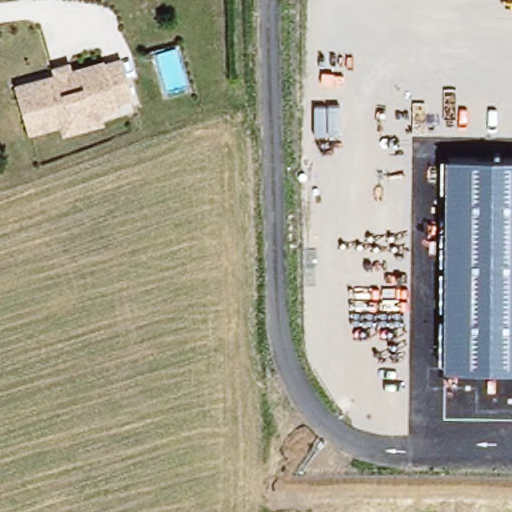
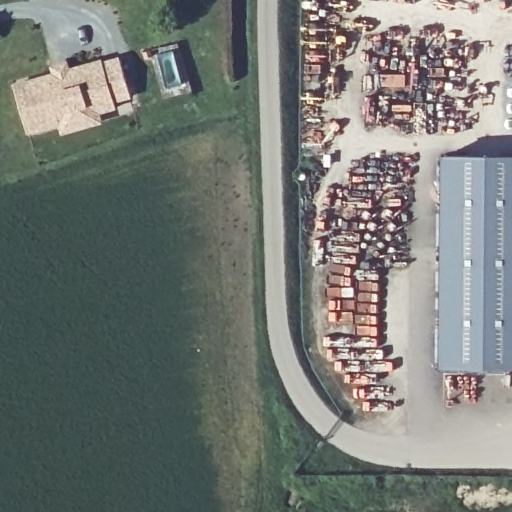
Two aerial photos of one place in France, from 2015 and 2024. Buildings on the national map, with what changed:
unchanged [(72,136),(69,126),(39,136),(22,85),(101,57),(102,61),(117,56),(130,95),(116,100),(119,107),(106,112),(110,122),(72,136)]
unchanged [(441,371),(442,157),(512,157),(512,371),(441,371)]

